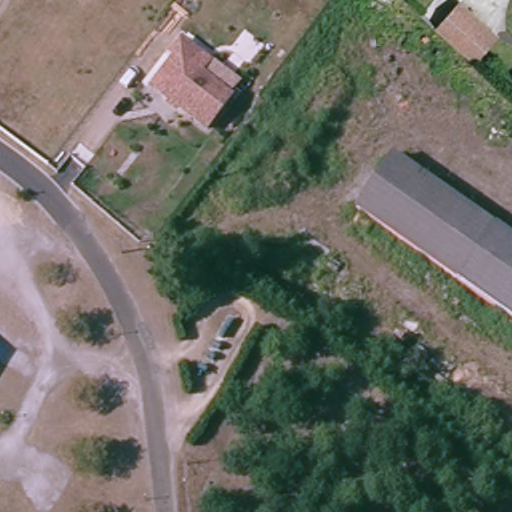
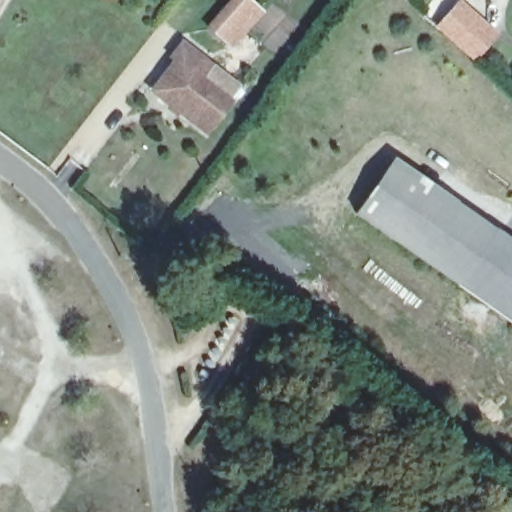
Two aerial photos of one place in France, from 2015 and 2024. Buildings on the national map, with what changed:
new [(232,50),(205,27),(227,0),(251,0),(264,11),(232,50)]
unchanged [(439,25),(462,0),(487,23),(498,34),(475,58),(464,49),(439,25)]
unchanged [(153,91),(177,61),(173,58),(184,44),(211,65),(242,89),(233,102),(208,134),(153,91)]
unchanged [(456,286),(353,215),(390,162),(492,234),(456,286)]
unchanged [(456,286),(492,234),(512,248),(512,326),(456,286)]

